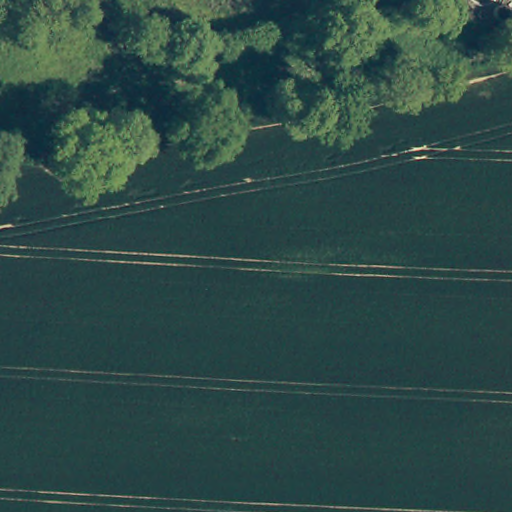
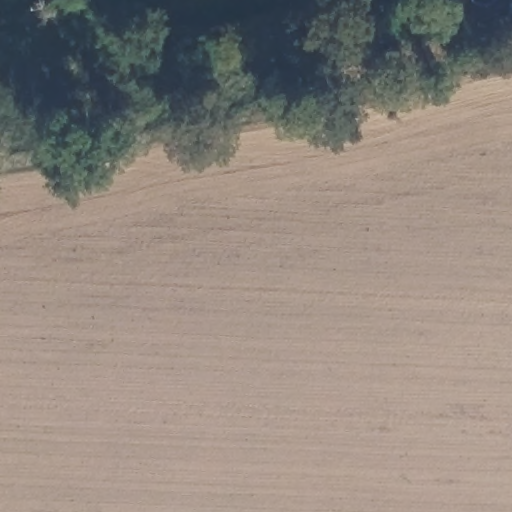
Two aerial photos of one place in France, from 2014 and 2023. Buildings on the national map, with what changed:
unchanged [(485,3),(482,4),(478,4),(475,3),(472,1),(470,0),(489,0),(488,1),(485,3)]
unchanged [(511,6),(512,7),(512,16),(512,17),(510,18),(509,19),(507,19),(505,19),(503,18),(502,16),(501,15),(500,14),(500,11),(500,10),(501,8),(502,6),(504,5),(505,5),(507,5),(509,5),(511,6)]

